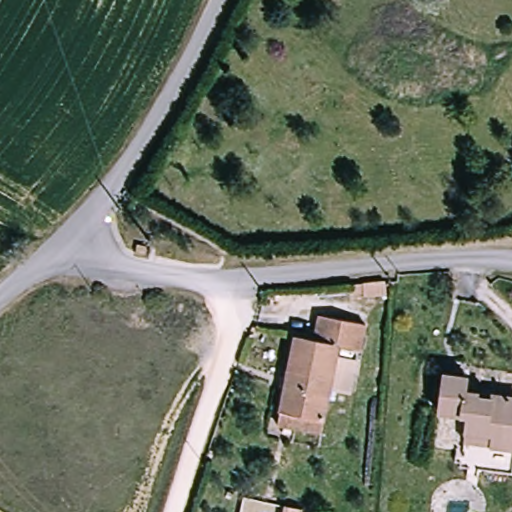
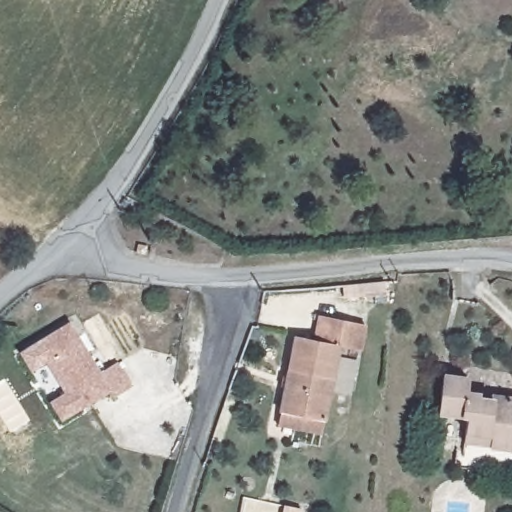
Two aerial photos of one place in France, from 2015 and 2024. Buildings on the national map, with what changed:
unchanged [(138,236),(137,249),(124,249),(125,235),(138,236)]
unchanged [(319,339),(324,317),(369,328),(364,350),(347,346),(327,420),(281,411),(299,334),(319,339)]
new [(64,328),(93,379),(111,369),(125,393),(107,404),(103,397),(55,425),(44,407),(59,398),(40,366),(25,375),(15,357),(64,328)]
unchanged [(466,426),(468,410),(441,406),(446,370),(468,373),(466,385),(480,387),(480,392),(494,393),(494,391),(512,393),(512,452),(494,449),(464,444),(466,426)]
unchanged [(307,507),(305,512),(287,512),(289,502),(307,507)]

